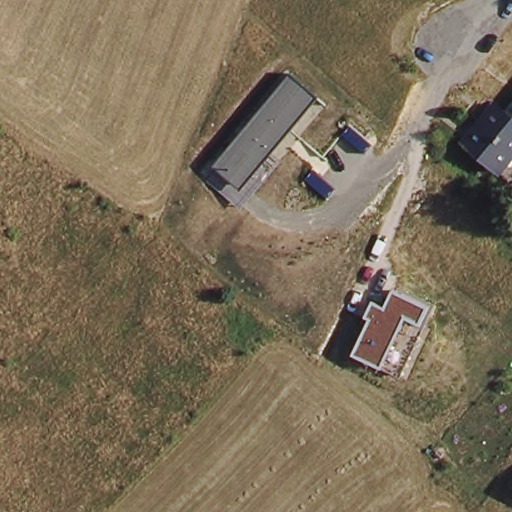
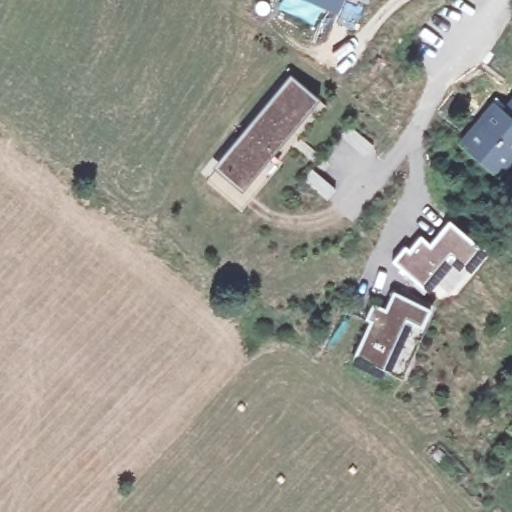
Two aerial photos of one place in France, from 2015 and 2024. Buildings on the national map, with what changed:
new [(332,4),(322,0),(333,0),(332,4)]
unchanged [(273,154),(281,160),(242,209),(209,183),(221,171),(215,166),(290,74),(320,98),(273,154)]
unchanged [(464,139),(495,103),(505,111),(512,102),(512,153),(498,169),(464,139)]
unchanged [(364,154),(340,135),(348,125),(373,145),(364,154)]
unchanged [(326,200),(303,182),(312,168),(335,188),(326,200)]
new [(405,244),(409,248),(421,233),(430,243),(449,221),(480,247),(464,265),(448,287),(432,276),(422,286),(393,261),(405,244)]
unchanged [(401,377),(382,369),(354,357),(371,320),(366,317),(374,303),(386,309),(394,292),(435,309),(401,377)]

